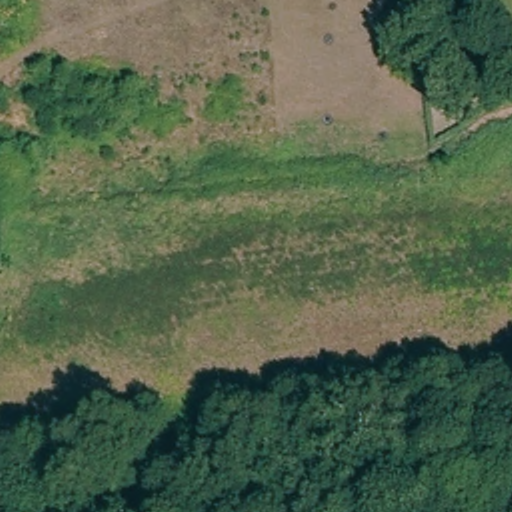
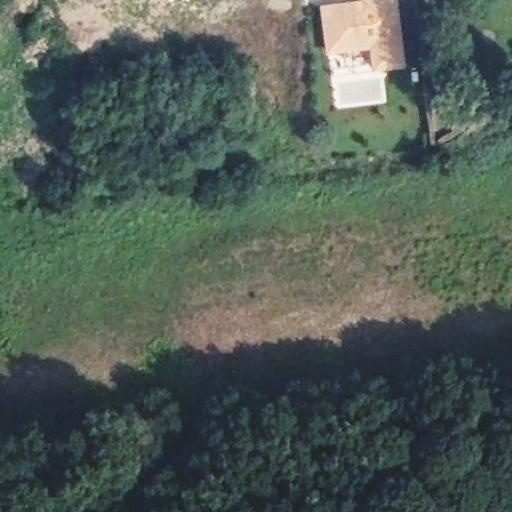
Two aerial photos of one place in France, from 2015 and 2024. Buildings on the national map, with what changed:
new [(361,0),(398,0),(406,69),(372,73),(370,50),(327,55),(321,6),(361,0)]

